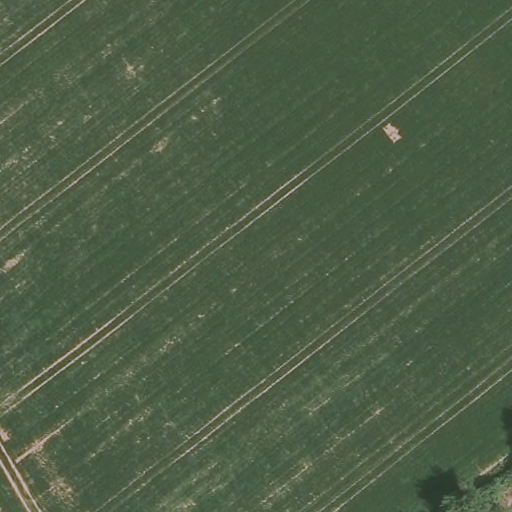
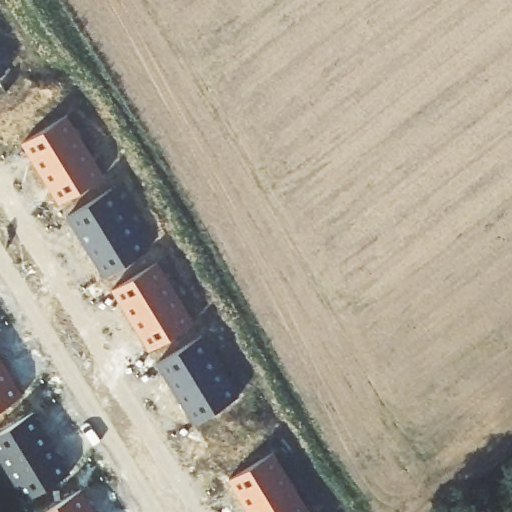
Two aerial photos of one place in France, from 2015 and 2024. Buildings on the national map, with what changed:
new [(0,75),(0,64),(5,73),(0,75)]
new [(0,96),(0,83),(5,92),(0,96)]
new [(65,115),(103,175),(59,204),(21,143),(65,115)]
new [(103,277),(66,217),(112,187),(150,247),(103,277)]
new [(111,290),(158,261),(196,323),(149,351),(111,290)]
new [(194,425),(156,365),(201,335),(238,395),(194,425)]
new [(0,409),(0,358),(23,395),(0,409)]
new [(0,432),(35,411),(71,473),(23,501),(0,461),(0,432)]
new [(228,479),(274,451),(311,512),(248,512),(228,479)]
new [(95,512),(44,512),(82,490),(95,512)]

